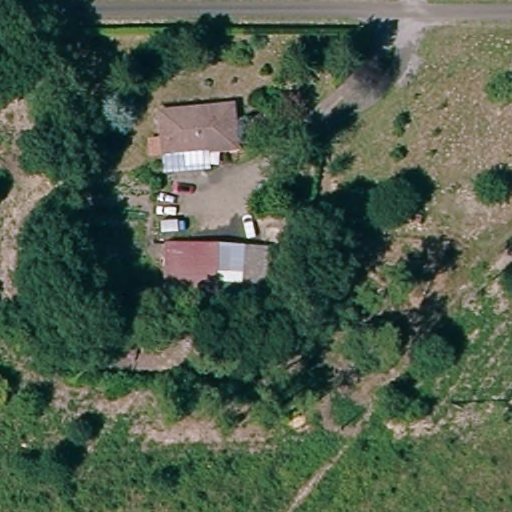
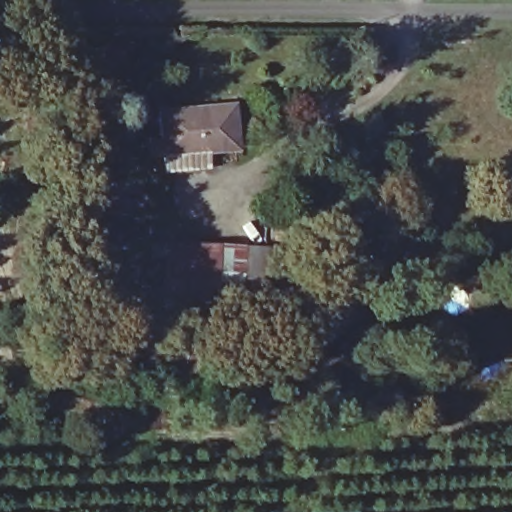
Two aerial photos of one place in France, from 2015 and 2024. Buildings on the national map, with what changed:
unchanged [(159,159),(155,117),(234,111),(237,152),(159,159)]
unchanged [(248,245),(245,306),(160,305),(159,242),(248,245)]

